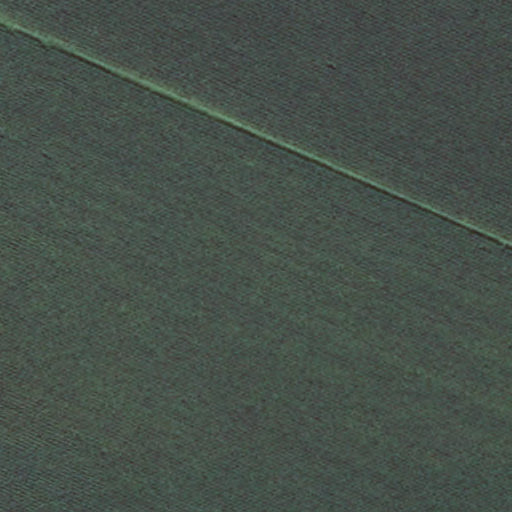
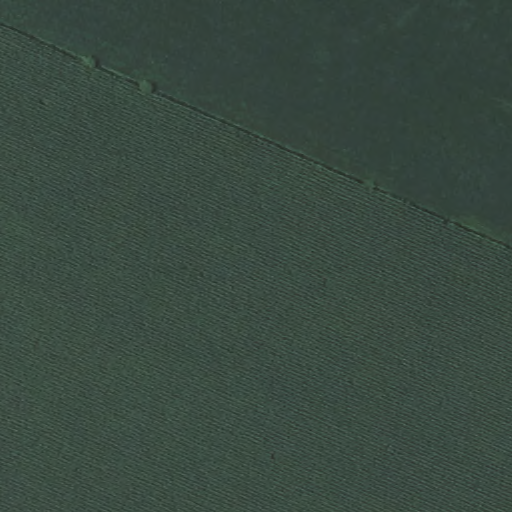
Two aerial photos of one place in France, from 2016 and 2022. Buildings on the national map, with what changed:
[]

